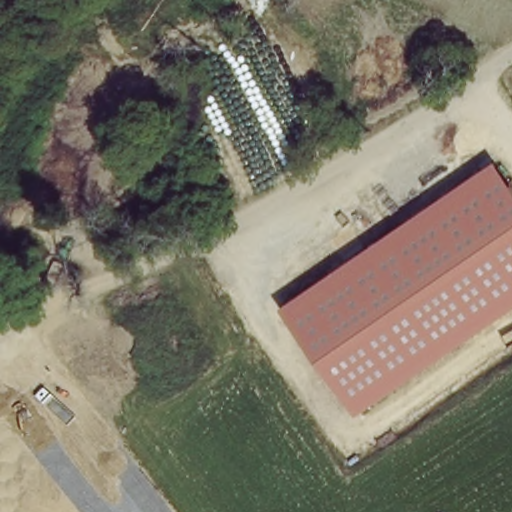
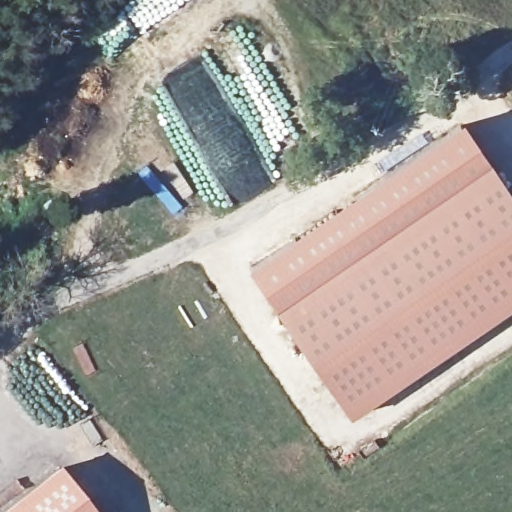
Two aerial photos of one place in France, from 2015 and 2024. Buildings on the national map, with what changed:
new [(250,271),(464,127),(492,164),(277,310),(250,271)]
unchanged [(512,192),(512,311),(352,421),(277,310),(492,164),(512,192)]

